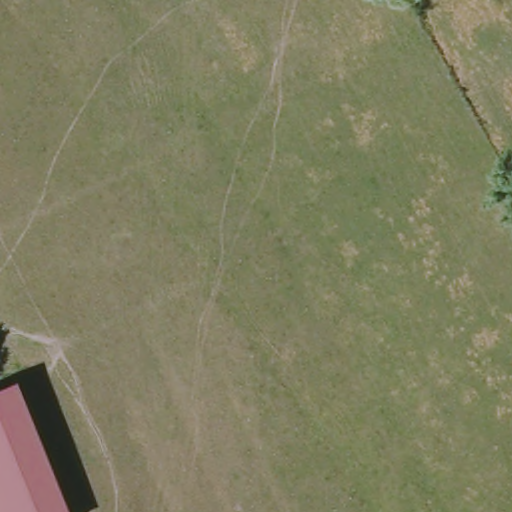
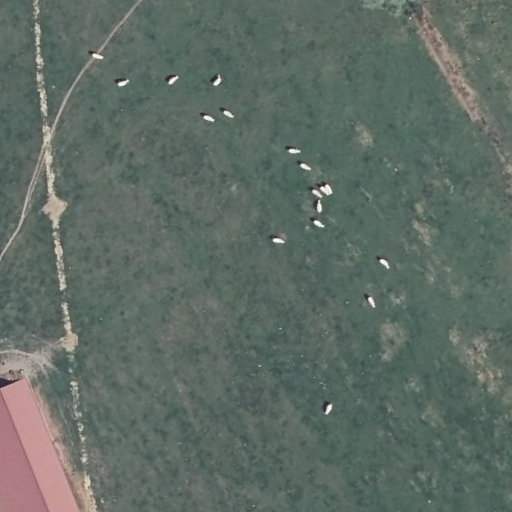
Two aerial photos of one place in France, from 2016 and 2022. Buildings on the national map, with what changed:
unchanged [(64,512),(2,512),(0,507),(0,387),(9,383),(64,512)]

